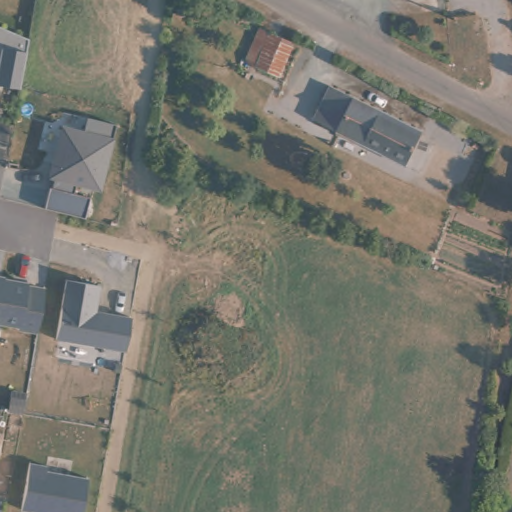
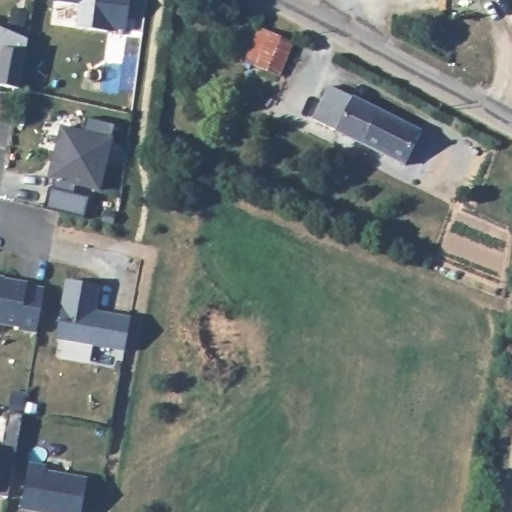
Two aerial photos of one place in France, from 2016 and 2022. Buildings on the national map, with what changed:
new [(78,4),(53,2),(53,0),(129,0),(125,30),(106,28),(105,31),(75,28),(78,4)]
unchanged [(0,86),(0,27),(27,39),(19,89),(0,86)]
unchanged [(293,48),(281,73),(247,54),(259,31),(293,48)]
unchanged [(422,130),(403,166),(366,147),(359,162),(325,144),(333,131),(312,119),(330,84),(422,130)]
unchanged [(45,208),(49,188),(53,189),(55,181),(47,180),(60,126),(82,131),(87,119),(115,124),(100,191),(77,186),(75,194),(88,197),(84,217),(45,208)]
unchanged [(27,290),(45,292),(40,337),(13,332),(15,326),(0,323),(0,277),(29,282),(27,290)]
unchanged [(99,287),(95,311),(130,317),(125,353),(54,339),(64,282),(99,287)]
unchanged [(46,472),(86,479),(81,512),(33,512),(20,510),(26,462),(47,465),(46,472)]

